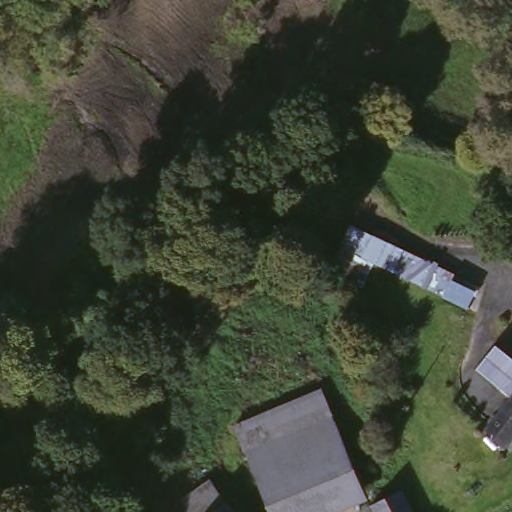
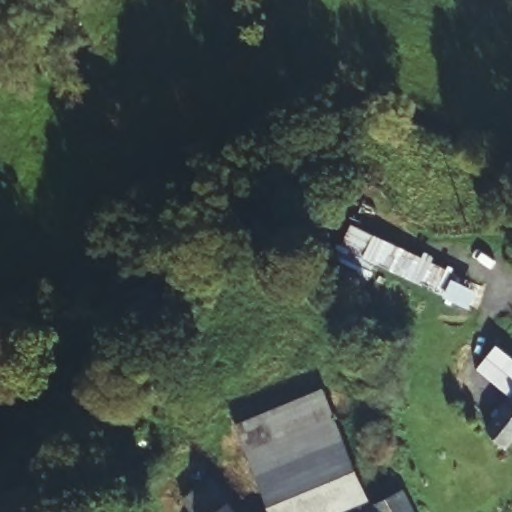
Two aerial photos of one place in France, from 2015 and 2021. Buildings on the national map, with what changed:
unchanged [(441,292),(378,265),(367,290),(344,275),(365,230),(451,272),(441,292)]
unchanged [(512,352),(512,397),(509,400),(471,365),(496,337),(512,352)]
unchanged [(275,512),(241,427),(323,389),(368,501),(340,512),(275,512)]
unchanged [(512,397),(512,441),(505,449),(486,430),(484,427),(494,417),(509,400),(512,397)]
unchanged [(223,505),(216,512),(182,512),(178,507),(203,483),(223,505)]
unchanged [(384,512),(379,503),(396,491),(399,490),(411,512),(384,512)]
unchanged [(228,512),(216,512),(223,505),(228,512)]

